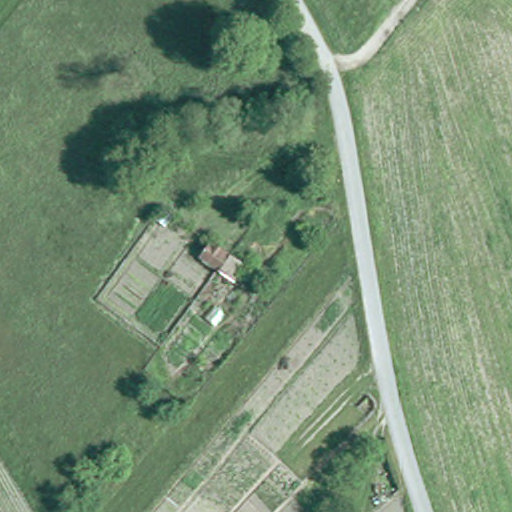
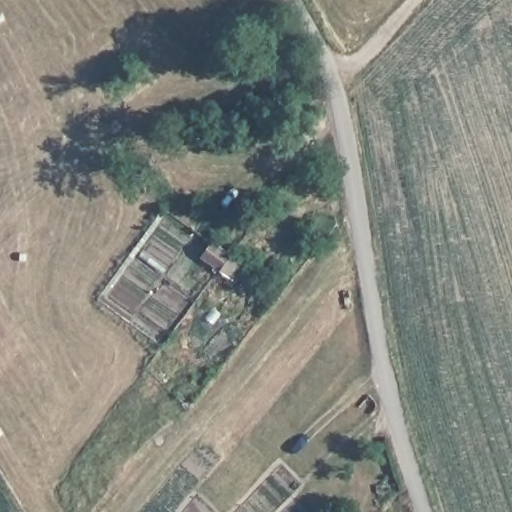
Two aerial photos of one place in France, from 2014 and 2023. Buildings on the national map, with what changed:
unchanged [(222,265),(204,253),(215,239),(233,251),(222,265)]

